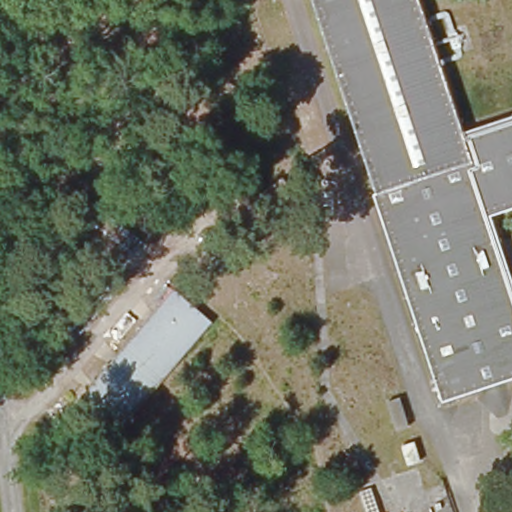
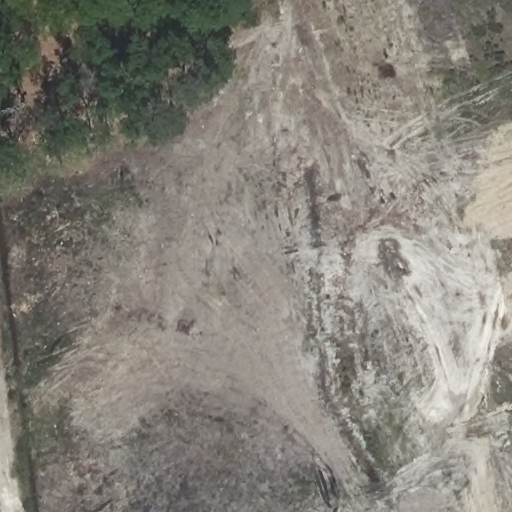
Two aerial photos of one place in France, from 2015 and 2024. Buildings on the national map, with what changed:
demolished [(471,165),(374,198),(359,151),(308,0),(416,0),(461,135),(471,165)]
demolished [(368,199),(374,198),(471,165),(461,135),(512,118),(512,386),(441,409),(387,253),(368,199)]
demolished [(209,322),(110,441),(70,412),(168,289),(209,322)]

